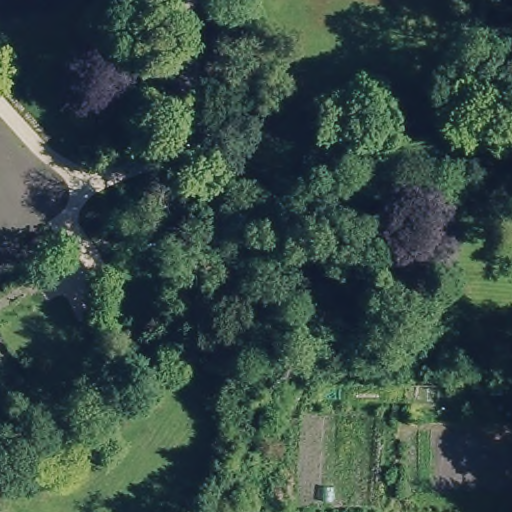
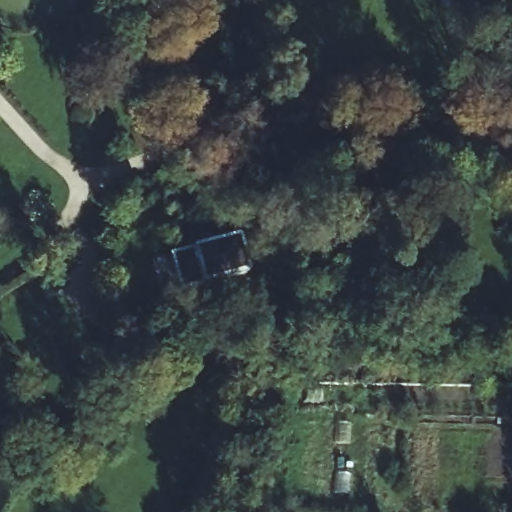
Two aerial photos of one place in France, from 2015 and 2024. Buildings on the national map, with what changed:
unchanged [(204,247),(206,250),(210,249),(214,263),(221,260),(226,278),(196,286),(187,250),(204,247)]

